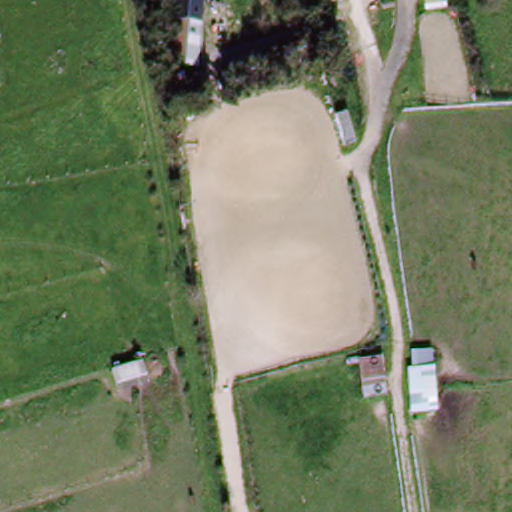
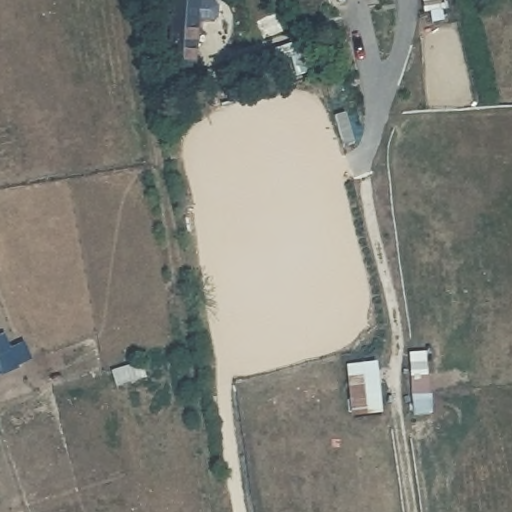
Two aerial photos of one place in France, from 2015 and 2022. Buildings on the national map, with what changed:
unchanged [(342,6),(315,10),(313,0),(341,0),(342,6)]
new [(19,371),(2,379),(0,375),(0,376),(0,338),(4,335),(11,351),(24,344),(33,362),(18,367),(19,371)]

